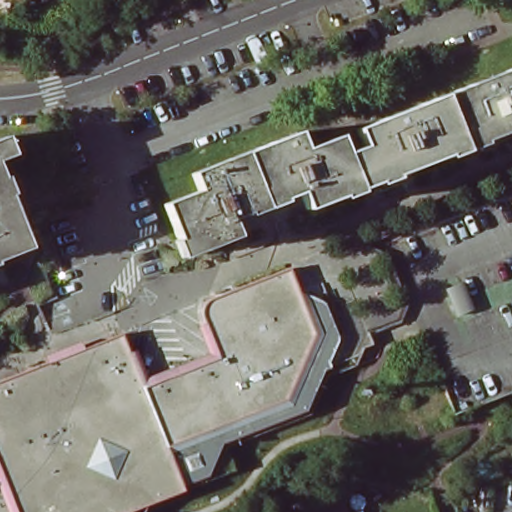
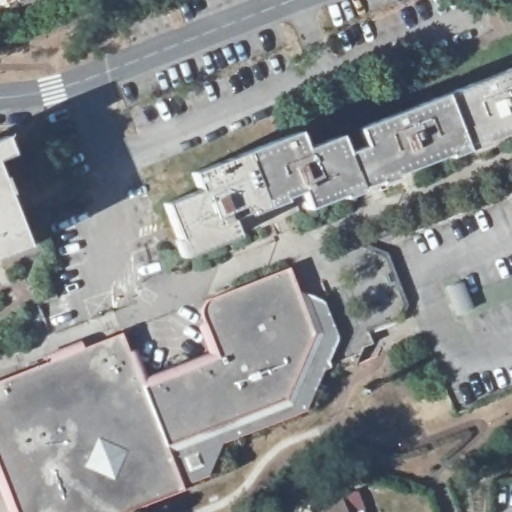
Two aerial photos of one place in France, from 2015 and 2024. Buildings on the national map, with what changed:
unchanged [(482,143),(485,148),(466,154),(463,146),(451,116),(448,109),(442,95),(512,69),(512,132),(482,143)]
unchanged [(250,150),(287,135),(296,131),(303,149),(307,147),(314,144),(337,135),(344,154),(363,148),(359,139),(356,132),(355,128),(389,115),(419,104),(427,101),(442,95),(448,109),(451,116),(463,146),(466,154),(448,161),(447,157),(394,176),(394,177),(395,181),(378,188),(376,183),(358,190),(359,195),(342,201),(341,197),(336,199),(304,210),(298,195),(283,200),(284,204),(275,208),(266,211),(257,190),(254,183),(249,169),(242,153),(250,150)]
unchanged [(13,155),(0,160),(0,138),(5,136),(13,155)]
unchanged [(258,214),(247,218),(246,214),(229,220),(230,223),(236,238),(209,248),(208,248),(179,259),(175,250),(172,242),(176,240),(164,208),(162,204),(197,192),(196,188),(191,177),(190,173),(217,163),(242,153),(249,169),(254,183),(257,190),(266,211),(258,214)]
unchanged [(5,178),(11,195),(8,197),(15,216),(15,217),(28,249),(4,258),(0,260),(0,178),(1,179),(5,178)]
unchanged [(148,383),(222,355),(208,319),(207,313),(207,306),(208,301),(293,270),(302,293),(311,295),(326,303),(341,339),(331,364),(322,382),(306,418),(270,432),(220,452),(229,474),(139,508),(129,512),(7,512),(0,494),(0,378),(71,351),(125,329),(148,383)]
unchanged [(303,510),(335,497),(340,512),(304,512),(303,510)]
unchanged [(355,511),(356,512),(353,512),(355,511)]

